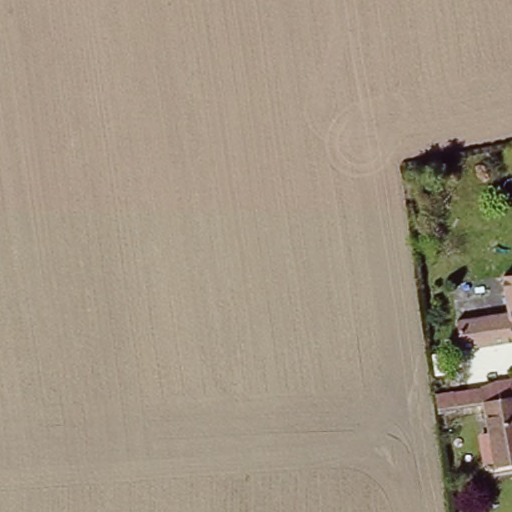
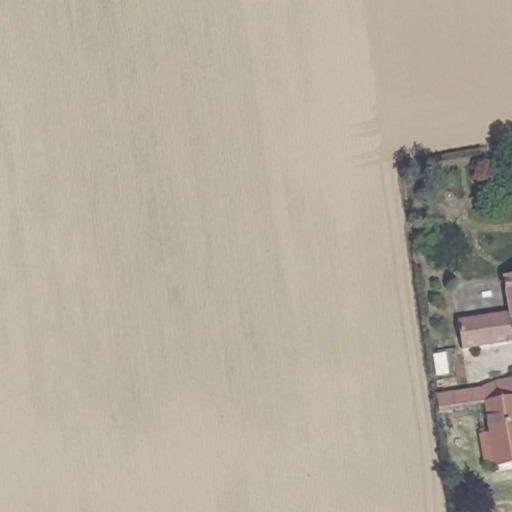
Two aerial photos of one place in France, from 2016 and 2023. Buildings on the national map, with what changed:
unchanged [(459,317),(473,316),(507,312),(506,303),(500,303),(499,297),(498,287),(502,286),(503,286),(502,280),(512,278),(512,338),(460,345),(457,318),(459,317)]
unchanged [(512,380),(512,449),(501,450),(491,383),(512,380)]

